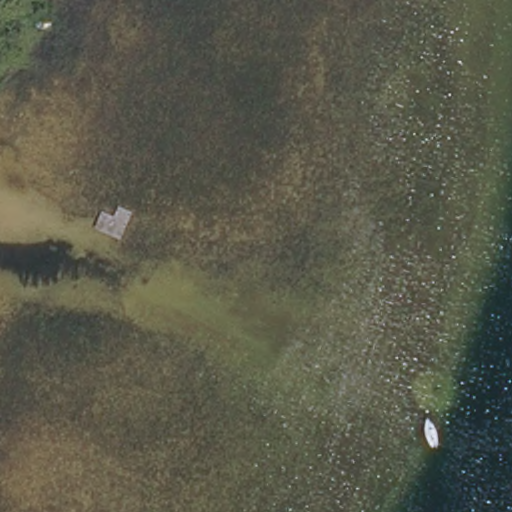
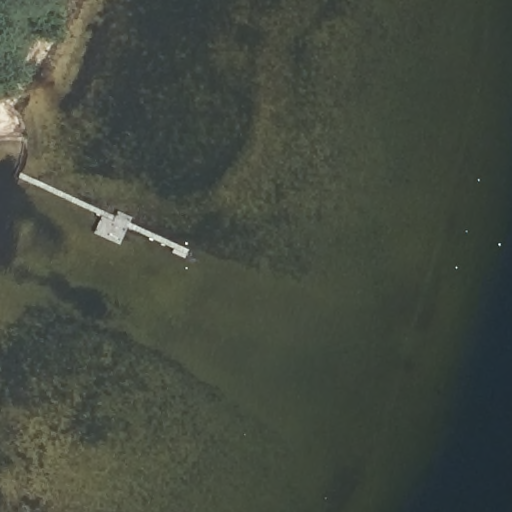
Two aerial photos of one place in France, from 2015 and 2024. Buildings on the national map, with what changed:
[]

